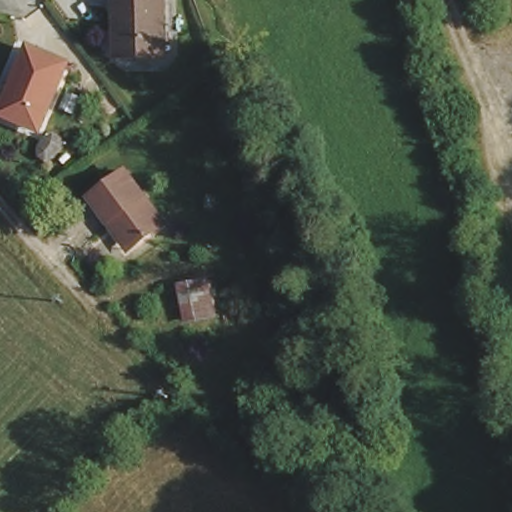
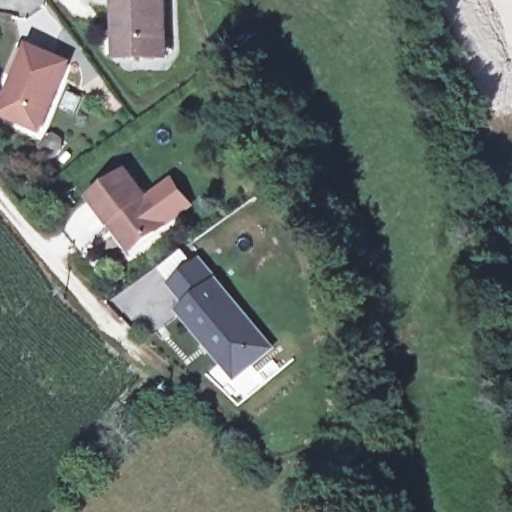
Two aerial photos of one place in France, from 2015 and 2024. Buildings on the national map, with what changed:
unchanged [(122,19),(122,0),(169,0),(170,55),(128,55),(122,55),(122,19)]
unchanged [(0,105),(11,79),(15,81),(30,48),(67,63),(40,128),(0,112),(0,105)]
unchanged [(109,221),(91,196),(126,170),(164,223),(136,244),(129,249),(109,221)]
new [(200,256),(217,277),(274,348),(234,381),(175,310),(182,305),(167,285),(200,256)]
demolished [(219,276),(222,299),(204,302),(202,290),(192,292),(190,280),(219,276)]

